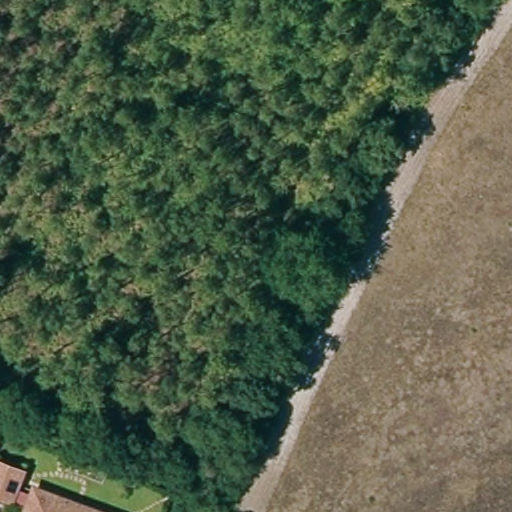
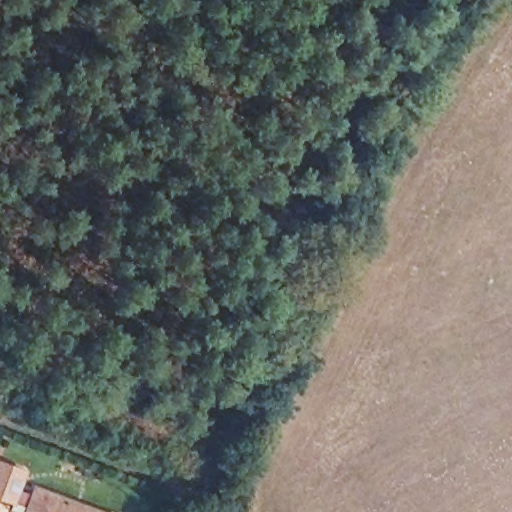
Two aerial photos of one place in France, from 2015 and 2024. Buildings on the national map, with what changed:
unchanged [(37,485),(71,497),(87,502),(116,512),(29,512),(29,511),(31,503),(0,493),(0,460),(25,469),(19,486),(35,491),(37,485)]

